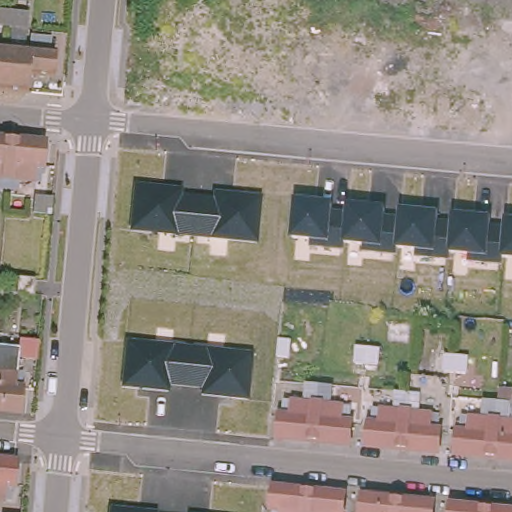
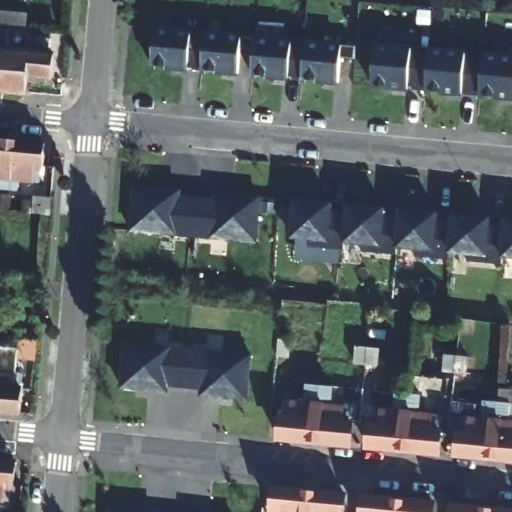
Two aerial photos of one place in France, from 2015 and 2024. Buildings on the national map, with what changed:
unchanged [(24,34),(6,31),(0,31),(0,16),(7,17),(25,19),(24,34)]
new [(354,45),(352,58),(337,58),(335,80),(252,72),(253,50),(237,49),(235,70),(153,64),(155,27),(354,45)]
unchanged [(22,56),(24,42),(46,44),(45,58),(50,59),(47,84),(22,81),(21,99),(0,96),(3,54),(22,56)]
new [(512,97),(375,85),(375,45),(512,58),(512,97)]
unchanged [(0,96),(0,54),(3,54),(0,96)]
unchanged [(0,189),(0,139),(6,140),(1,190),(0,189)]
unchanged [(6,140),(41,143),(38,167),(35,166),(33,180),(12,178),(11,190),(1,190),(6,140)]
unchanged [(261,195),(257,243),(130,231),(134,184),(183,189),(182,195),(213,198),(213,191),(261,195)]
unchanged [(44,212),(30,210),(31,197),(45,198),(44,212)]
unchanged [(502,263),(467,261),(467,255),(450,254),(449,259),(415,256),(415,251),(396,250),(395,254),(362,251),(363,246),(345,245),(343,249),(310,246),(310,240),(291,240),(295,200),(332,203),(332,211),(347,212),(347,204),(385,207),(385,216),(399,217),(400,207),(438,211),(437,221),(451,222),(452,213),(490,217),(490,224),(503,225),(504,218),(512,219),(512,259),(503,258),(502,263)]
unchanged [(33,280),(31,295),(16,293),(17,277),(33,280)]
unchanged [(35,356),(18,355),(20,340),(36,341),(35,356)]
unchanged [(170,386),(168,393),(120,388),(125,341),(252,353),(249,401),(200,396),(201,390),(170,386)]
unchanged [(23,390),(20,412),(0,410),(0,371),(14,372),(22,373),(21,387),(21,390),(23,390)]
unchanged [(275,385),(284,387),(282,402),(273,401),(275,385)]
unchanged [(370,410),(362,410),(355,408),(356,393),(363,394),(372,395),(370,410)]
unchanged [(443,417),(445,401),(452,402),(460,403),(459,418),(450,417),(443,417)]
unchanged [(313,442),(279,440),(281,416),(291,417),(292,403),(316,405),(313,442)]
unchanged [(345,408),(343,422),(352,423),(350,446),(313,442),(316,405),(345,408)]
unchanged [(402,451),(367,447),(370,425),(378,425),(380,411),(406,413),(402,451)]
unchanged [(432,416),(431,430),(441,431),(439,455),(402,451),(406,413),(432,416)]
unchanged [(491,460),(456,456),(458,433),(468,434),(470,420),(495,422),(491,460)]
unchanged [(512,461),(491,460),(495,422),(512,424),(512,461)]
unchanged [(17,461),(15,487),(13,487),(12,501),(4,500),(0,500),(0,460),(17,461)]
unchanged [(273,488),(309,491),(308,512),(280,512),(271,511),(273,488)]
unchanged [(346,495),(345,512),(308,512),(309,491),(346,495)]
unchanged [(399,500),(398,512),(362,512),(363,496),(399,500)]
unchanged [(433,503),(433,512),(398,512),(399,500),(433,503)]
unchanged [(109,512),(110,505),(158,510),(158,512),(109,512)]
unchanged [(467,512),(451,512),(451,510),(467,512)]

